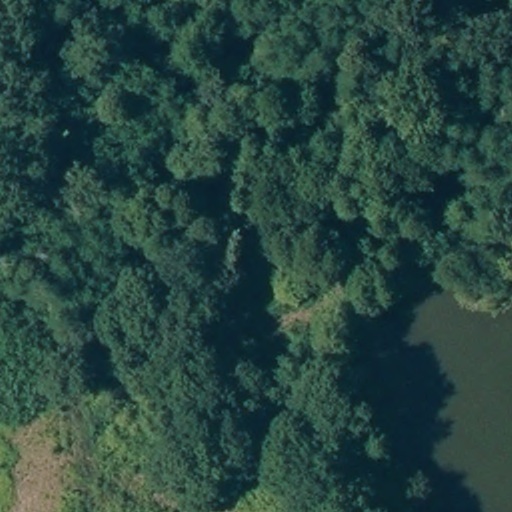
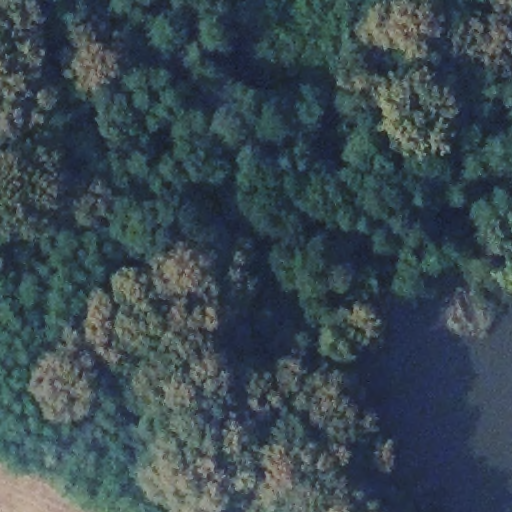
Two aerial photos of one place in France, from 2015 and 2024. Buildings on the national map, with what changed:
[]

